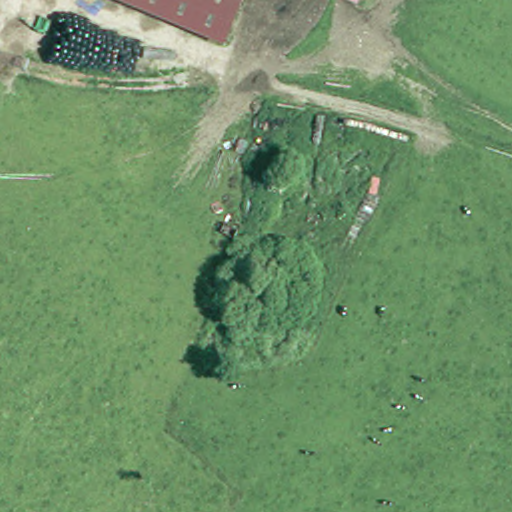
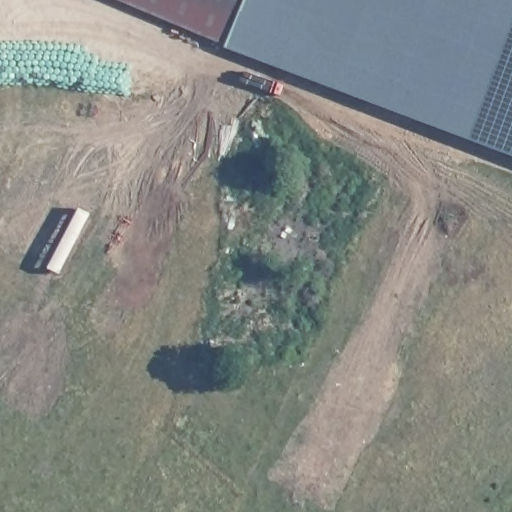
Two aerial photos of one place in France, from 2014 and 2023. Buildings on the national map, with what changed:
unchanged [(122,0),(242,0),(225,44),(122,0)]
new [(246,0),(512,0),(512,131),(237,22),(246,0)]
unchanged [(355,0),(361,0),(360,2),(355,0)]
new [(229,44),(237,22),(512,131),(512,156),(229,44)]

